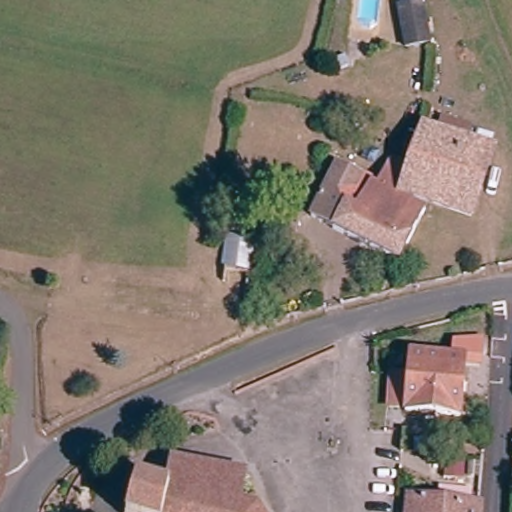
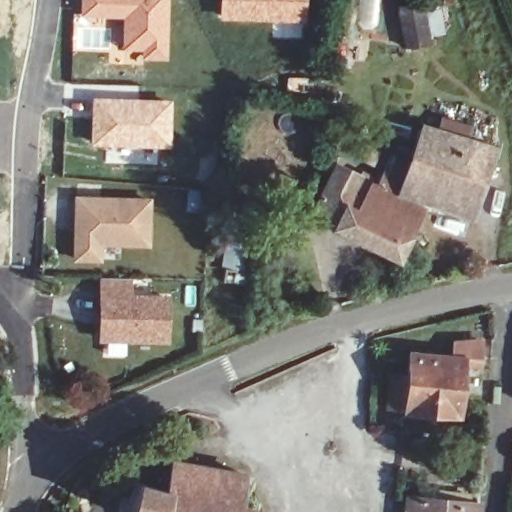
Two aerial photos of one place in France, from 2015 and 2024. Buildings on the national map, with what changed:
new [(80,0),(170,0),(169,60),(139,59),(139,52),(122,51),(122,18),(79,15),(80,0)]
new [(219,0),(307,0),(306,25),(219,19),(219,0)]
unchanged [(446,57),(421,65),(402,10),(426,2),(446,57)]
new [(91,95),(172,99),(172,149),(90,145),(91,95)]
unchanged [(405,172),(418,129),(433,134),(435,130),(448,134),(467,140),(464,150),(488,159),(468,220),(388,195),(379,193),(382,185),(387,168),(405,172)]
unchanged [(425,220),(414,239),(420,241),(412,255),(406,251),(397,269),(346,237),(347,235),(311,214),(327,185),(320,181),(325,172),(332,177),(337,170),(352,178),(357,170),(382,185),(379,193),(388,195),(425,220)]
new [(76,196),(152,197),(151,248),(102,247),(102,263),(72,262),(76,196)]
unchanged [(260,228),(256,280),(224,278),(229,226),(260,228)]
new [(132,278),(132,292),(171,292),(171,341),(100,340),(100,277),(132,278)]
unchanged [(407,355),(450,358),(451,345),(477,343),(477,360),(461,359),(457,421),(402,417),(385,415),(387,380),(405,382),(407,355)]
unchanged [(242,505),(264,510),(266,512),(128,512),(137,477),(166,484),(171,460),(247,480),(242,505)]
unchanged [(478,508),(478,512),(412,512),(413,501),(478,508)]

